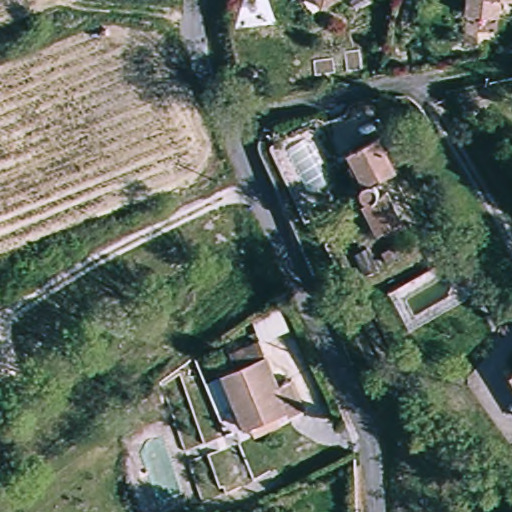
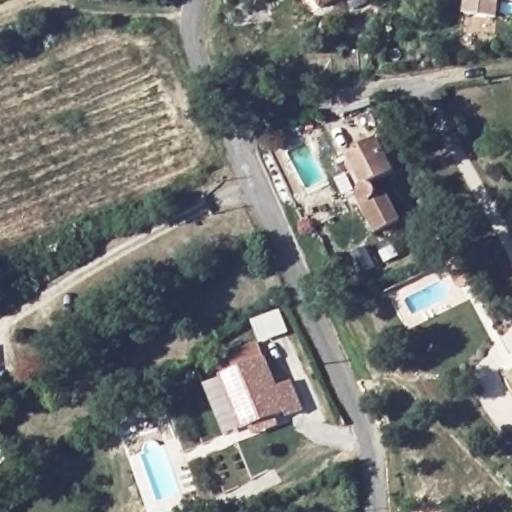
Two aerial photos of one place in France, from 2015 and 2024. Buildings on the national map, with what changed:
unchanged [(311,5),(309,0),(318,0),(311,5)]
unchanged [(470,13),(470,0),(499,0),(497,15),(470,13)]
unchanged [(364,208),(370,205),(366,195),(370,185),(352,149),(379,135),(398,170),(380,182),(385,193),(390,192),(405,220),(390,228),(379,235),(364,208)]
unchanged [(467,260),(481,285),(467,294),(451,269),(467,260)]
unchanged [(251,421),(246,424),(227,374),(236,370),(226,346),(255,335),(275,383),(290,377),(301,406),(288,411),(287,407),(273,413),(278,423),(255,433),(251,421)]

